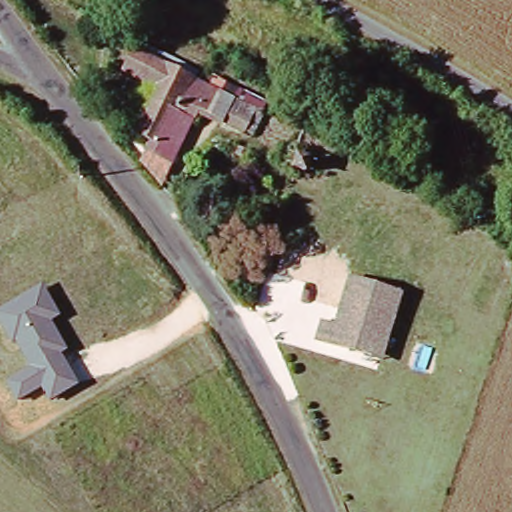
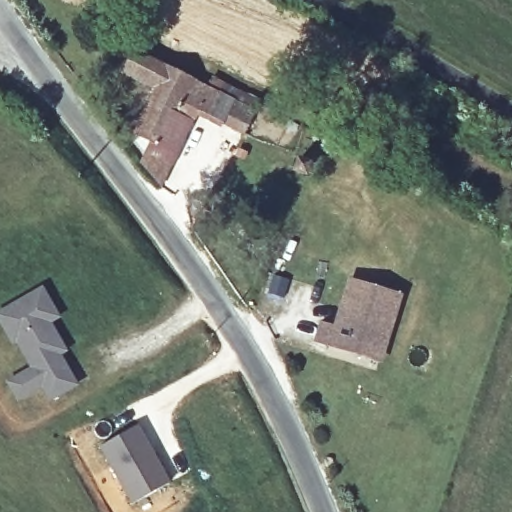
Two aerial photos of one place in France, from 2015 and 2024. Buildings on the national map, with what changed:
unchanged [(128,66),(142,42),(225,83),(221,90),(253,109),(243,126),(197,101),(193,109),(198,114),(176,157),(149,145),(153,136),(135,127),(158,81),(128,66)]
unchanged [(295,157),(308,161),(303,176),(290,171),(295,157)]
unchanged [(352,348),(320,341),(325,322),(339,326),(351,281),(403,295),(390,345),(387,357),(352,348)]
unchanged [(61,317),(51,323),(67,352),(62,355),(79,386),(50,402),(42,388),(20,402),(8,381),(30,368),(17,342),(13,345),(0,323),(0,310),(42,287),(61,317)]
new [(172,482),(135,503),(101,446),(137,425),(172,482)]

